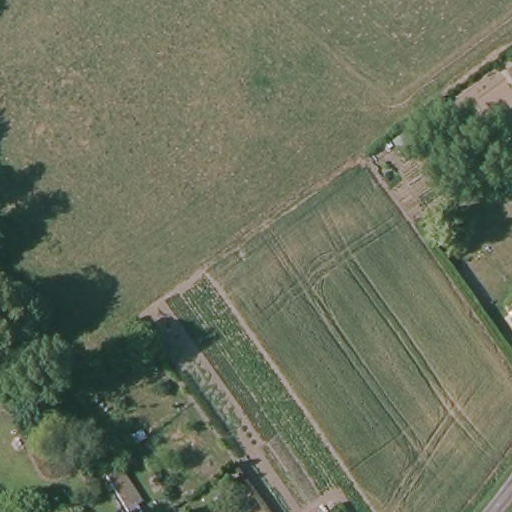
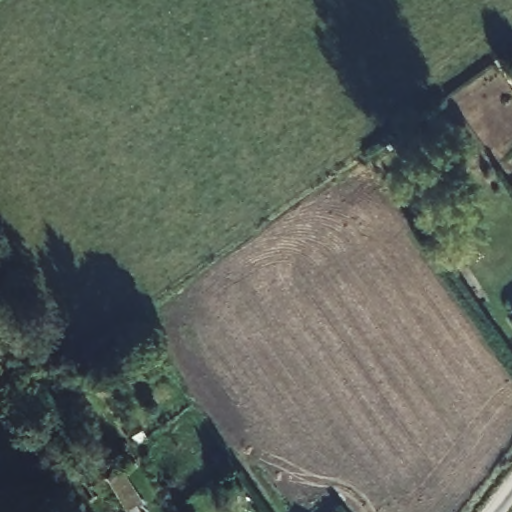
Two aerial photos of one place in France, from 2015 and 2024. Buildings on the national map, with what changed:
[]

